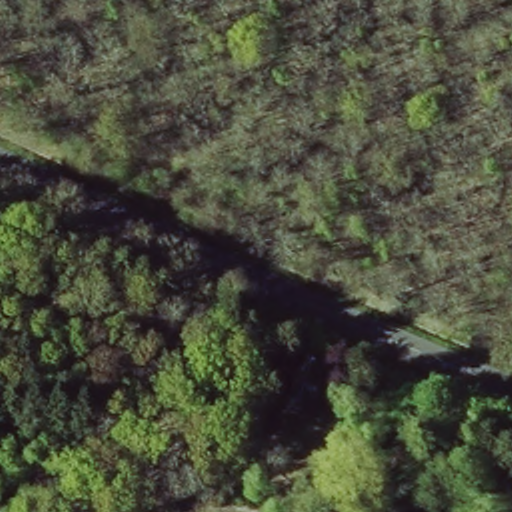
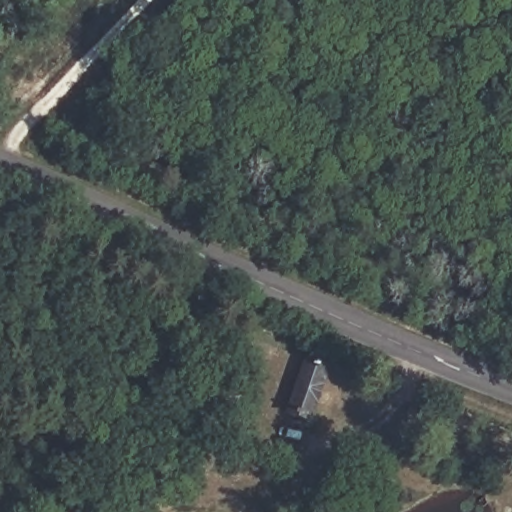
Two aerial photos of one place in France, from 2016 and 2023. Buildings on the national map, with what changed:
unchanged [(333,377),(308,420),(284,406),(309,363),(333,377)]
unchanged [(260,483),(284,485),(283,508),(258,506),(260,483)]

